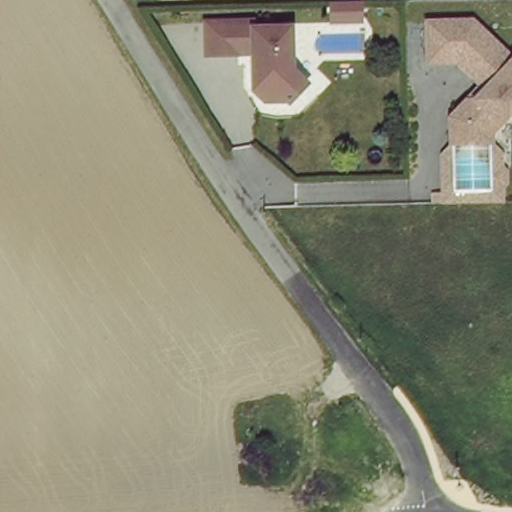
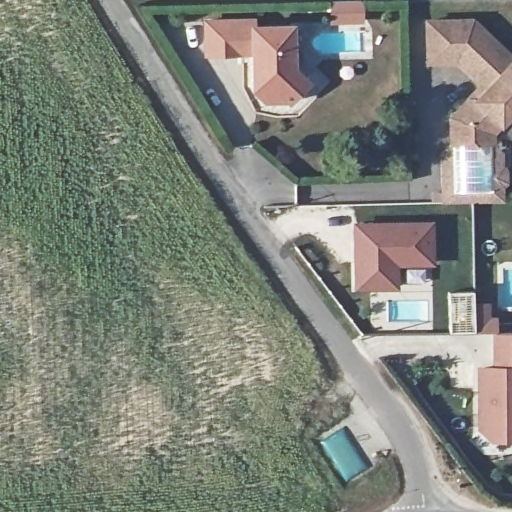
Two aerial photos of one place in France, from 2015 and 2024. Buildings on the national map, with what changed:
unchanged [(363,14),(333,15),(332,0),(362,0),(363,14)]
unchanged [(493,127),(494,136),(454,137),(454,111),(484,79),(459,55),(431,56),(430,16),(474,14),(512,50),(512,107),(493,127)]
unchanged [(250,85),(249,66),(259,60),(259,53),(249,53),(249,50),(203,52),(202,19),(249,18),(249,24),(288,22),(289,65),(305,80),(286,99),(266,99),(250,85)]
unchanged [(505,147),(505,160),(510,164),(510,177),(506,181),(507,195),(454,197),(445,197),(444,148),(454,137),(494,136),(505,147)]
new [(430,252),(394,253),(394,276),(355,277),(355,252),(354,236),(354,215),(429,213),(430,252)]
new [(475,302),(490,302),(490,317),(498,317),(497,332),(512,332),(512,442),(490,441),(477,429),(475,365),(490,366),(492,333),(475,333),(475,302)]

